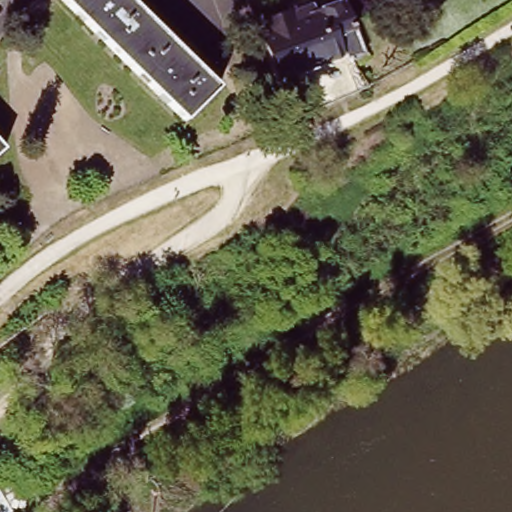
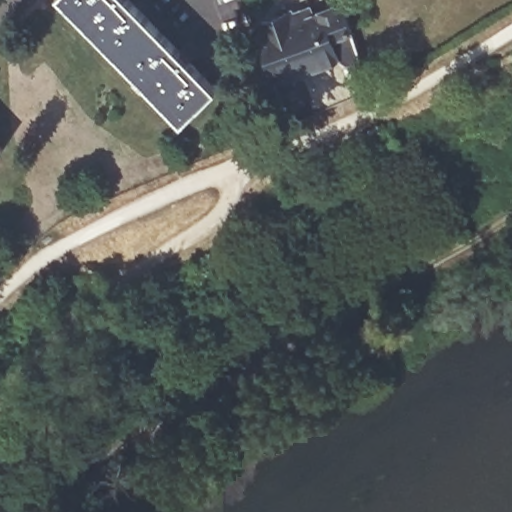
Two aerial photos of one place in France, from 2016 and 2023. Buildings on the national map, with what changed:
unchanged [(218,88),(184,122),(62,0),(129,0),(218,88)]
unchanged [(267,28),(263,17),(296,4),(297,7),(314,1),(317,10),(345,0),(348,0),(367,50),(354,57),(371,83),(303,112),(288,72),(279,75),(262,30),(267,28)]
unchanged [(4,150),(0,153),(0,146),(4,150)]

